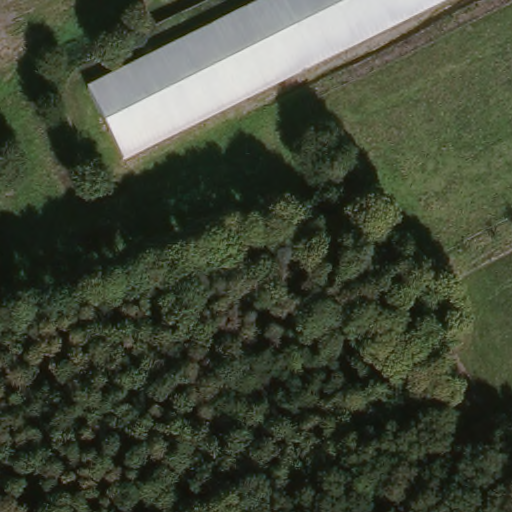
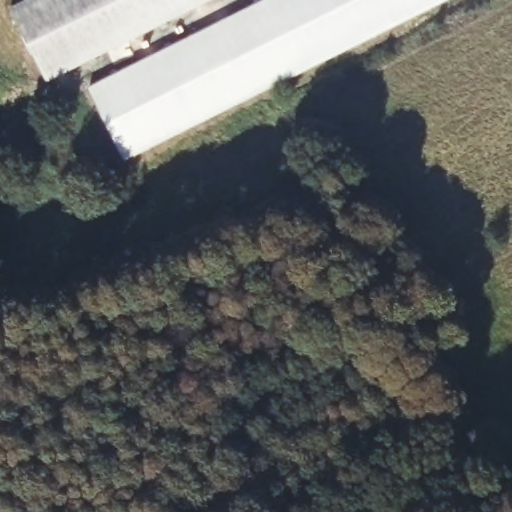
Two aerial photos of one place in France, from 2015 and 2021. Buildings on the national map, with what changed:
new [(11,8),(27,0),(213,0),(48,82),(11,8)]
unchanged [(439,0),(121,170),(85,98),(268,0),(439,0)]

